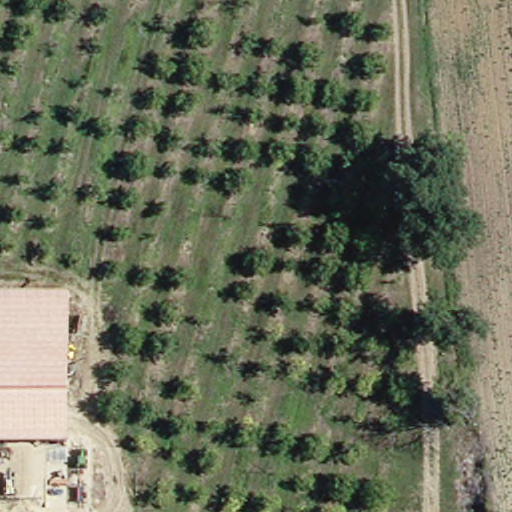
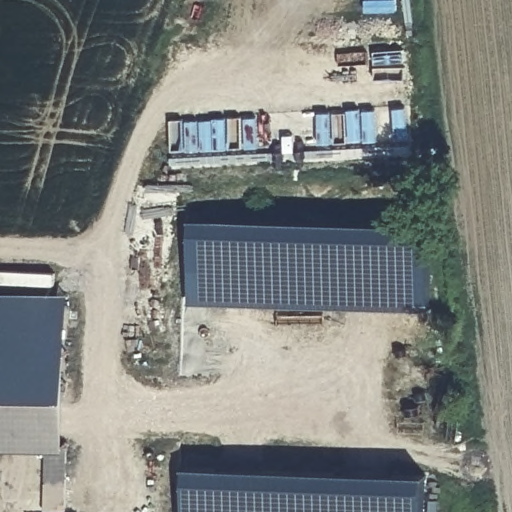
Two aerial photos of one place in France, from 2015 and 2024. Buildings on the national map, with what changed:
new [(183,306),(184,225),(413,227),(412,308),(183,306)]
unchanged [(68,443),(0,443),(0,295),(71,295),(68,443)]
new [(412,471),(411,512),(179,512),(180,468),(412,471)]

